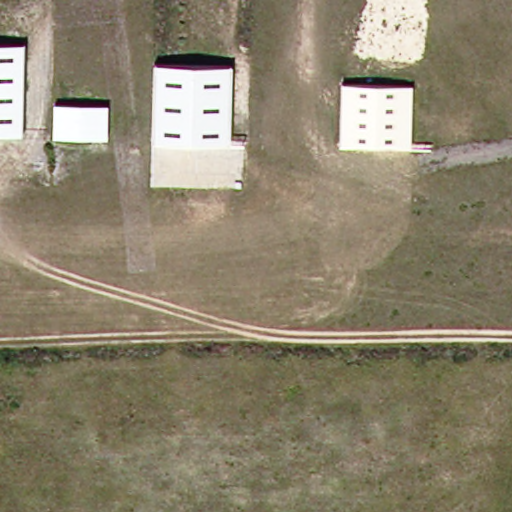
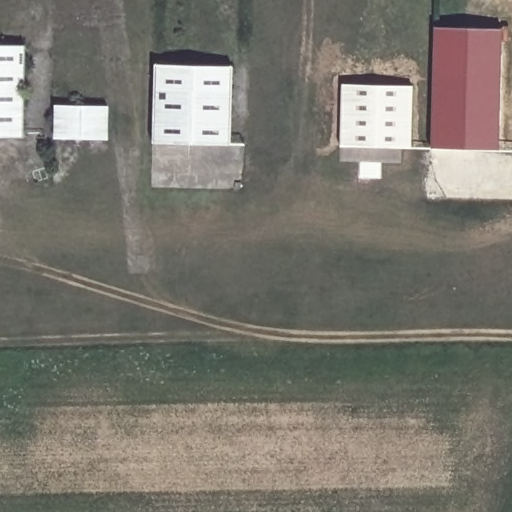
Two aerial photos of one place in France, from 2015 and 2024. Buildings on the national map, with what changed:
new [(433,29),(501,31),(498,152),(430,150),(433,29)]
unchanged [(24,45),(22,137),(0,137),(0,44),(24,45)]
unchanged [(229,144),(152,142),(153,123),(154,64),(232,66),(229,144)]
unchanged [(341,148),(342,85),(413,86),(411,150),(341,148)]
unchanged [(106,106),(105,140),(53,139),(54,105),(106,106)]

